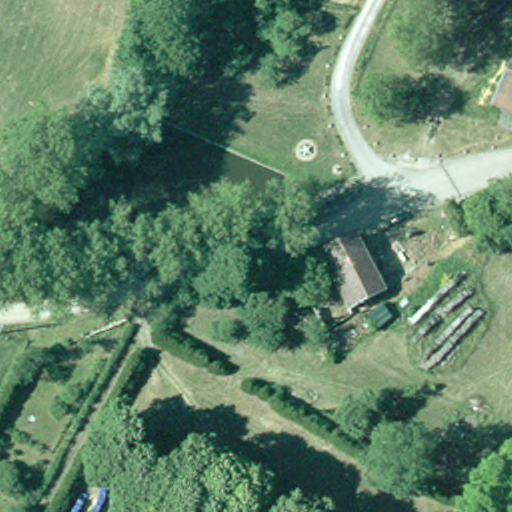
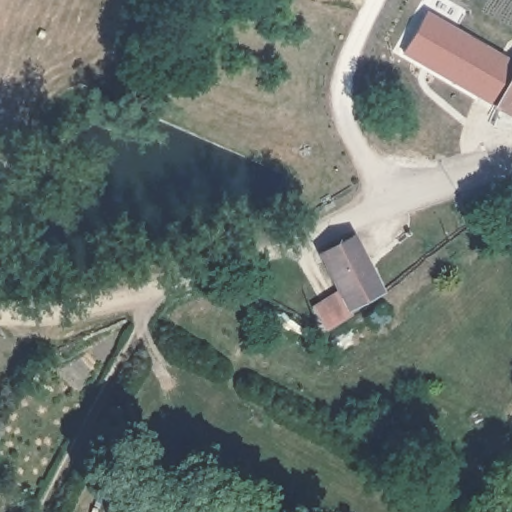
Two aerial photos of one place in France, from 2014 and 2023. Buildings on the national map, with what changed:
new [(425,10),(512,58),(512,63),(492,101),(402,51),(425,10)]
unchanged [(512,63),(512,110),(492,101),(512,63)]
unchanged [(350,231),(378,286),(346,304),(318,248),(350,231)]
new [(352,316),(326,331),(311,307),(339,289),(346,304),(352,316)]

